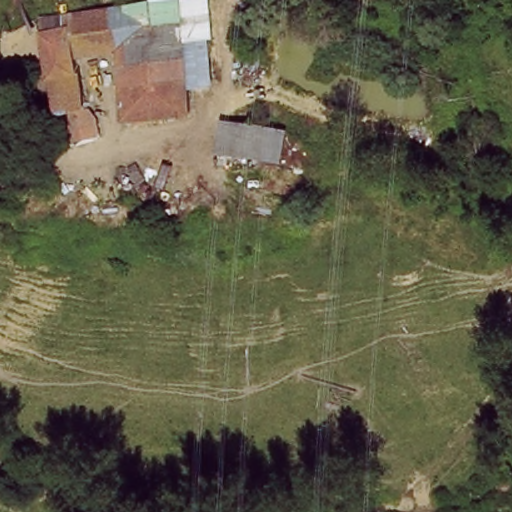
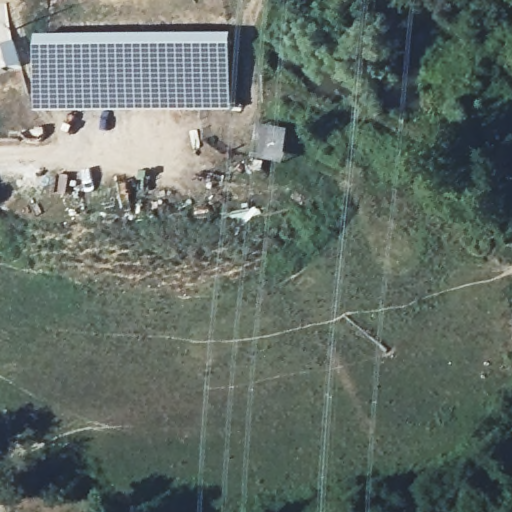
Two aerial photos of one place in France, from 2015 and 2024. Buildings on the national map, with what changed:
demolished [(105,135),(66,142),(62,120),(51,121),(34,32),(57,28),(56,17),(164,0),(167,0),(188,85),(194,114),(132,122),(121,50),(75,57),(84,111),(92,114),(102,117),(105,135)]
demolished [(221,78),(188,85),(167,0),(203,0),(221,78)]
new [(8,4),(23,67),(8,71),(0,44),(0,6),(8,4)]
new [(36,34),(233,34),(234,112),(103,114),(34,113),(36,34)]
unchanged [(289,129),(286,160),(202,156),(202,125),(289,129)]

